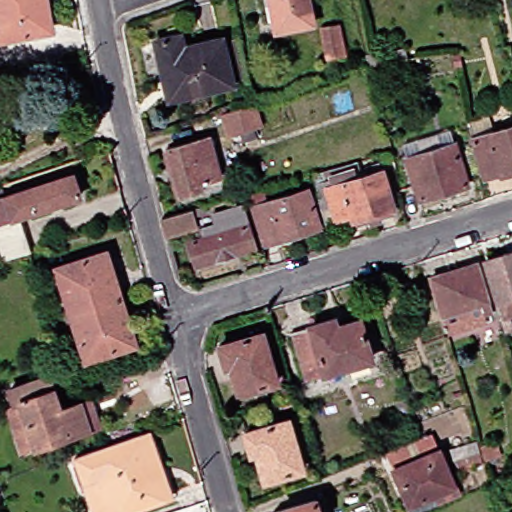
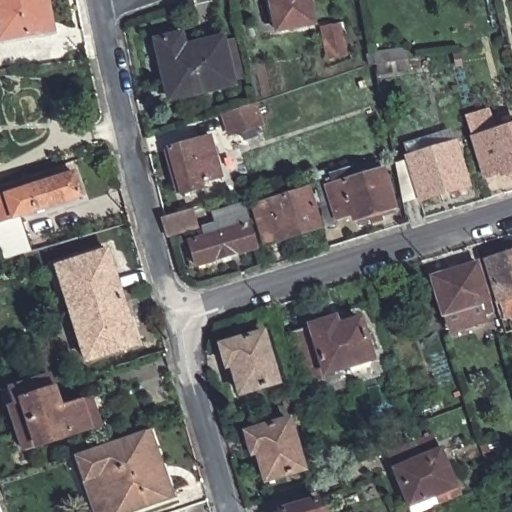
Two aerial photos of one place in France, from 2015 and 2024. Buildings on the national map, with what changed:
unchanged [(4,42),(0,25),(0,0),(52,0),(54,9),(58,31),(46,34),(4,42)]
unchanged [(282,31),(276,0),(313,0),(318,25),(282,31)]
unchanged [(174,86),(162,42),(188,35),(190,50),(229,40),(239,85),(190,97),(178,100),(174,86)]
unchanged [(368,35),(373,53),(361,55),(357,37),(368,35)]
unchanged [(374,55),(397,51),(399,60),(401,71),(369,80),(364,65),(375,64),(374,55)]
unchanged [(447,56),(453,55),(454,64),(449,66),(447,56)]
unchanged [(242,141),(238,132),(227,136),(220,114),(250,104),(257,126),(250,128),(254,137),(242,141)]
unchanged [(498,132),(512,129),(512,175),(508,176),(507,174),(491,179),(476,129),(496,123),(498,132)]
unchanged [(224,160),(219,160),(224,181),(210,185),(212,190),(190,196),(176,150),(218,138),(224,160)]
unchanged [(422,201),(408,160),(457,145),(469,187),(422,201)]
unchanged [(372,225),(369,216),(357,220),(355,215),(339,220),(328,181),(344,176),(346,182),(384,171),(396,209),(382,212),(384,221),(372,225)]
unchanged [(0,201),(33,190),(30,185),(46,179),(49,185),(75,176),(83,198),(22,218),(33,255),(26,256),(8,262),(0,239),(0,201)]
unchanged [(273,245),(261,208),(259,199),(272,195),(272,192),(290,186),(294,197),(315,190),(327,228),(310,234),(289,240),(273,245)]
unchanged [(257,249),(199,267),(192,243),(222,234),(217,215),(244,207),(257,249)]
unchanged [(195,217),(198,228),(170,236),(164,219),(170,217),(199,209),(200,215),(195,217)]
unchanged [(511,307),(512,311),(512,327),(507,329),(498,299),(502,298),(489,257),(512,250),(512,307),(511,307)]
unchanged [(103,255),(109,252),(115,273),(124,297),(74,313),(60,268),(103,255)]
unchanged [(495,310),(487,312),(484,301),(446,312),(434,274),(479,260),(495,310)]
unchanged [(131,348),(89,360),(74,313),(124,297),(133,326),(139,345),(131,348)]
unchanged [(383,358),(319,378),(305,333),(347,320),(349,327),(372,320),(383,358)]
unchanged [(242,390),(234,360),(228,362),(223,342),(264,330),(279,379),(242,390)]
unchanged [(94,400),(101,427),(25,450),(11,408),(5,391),(50,376),(55,392),(62,410),(94,400)]
unchanged [(305,470),(269,481),(260,453),(254,455),(248,434),(290,420),(305,470)]
unchanged [(124,512),(91,512),(71,456),(132,435),(154,428),(156,435),(176,495),(124,512)]
unchanged [(477,463),(464,467),(460,454),(473,450),(477,463)]
unchanged [(410,507),(396,470),(429,456),(442,451),(444,456),(457,490),(410,507)]
unchanged [(326,512),(287,512),(323,501),(326,512)]

